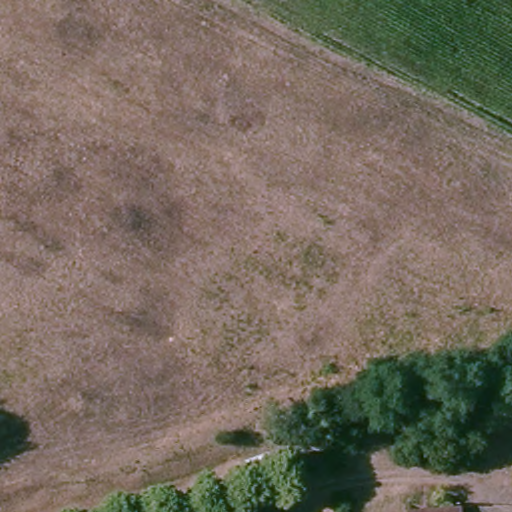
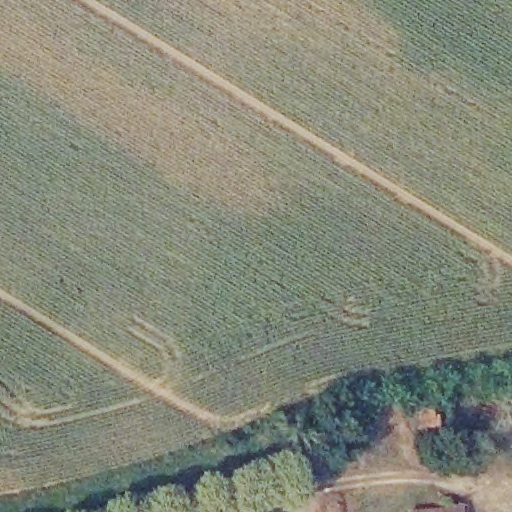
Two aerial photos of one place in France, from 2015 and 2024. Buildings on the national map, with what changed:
unchanged [(413,404),(437,404),(438,426),(413,426),(413,404)]
unchanged [(431,509),(461,505),(461,512),(431,512),(431,509)]

